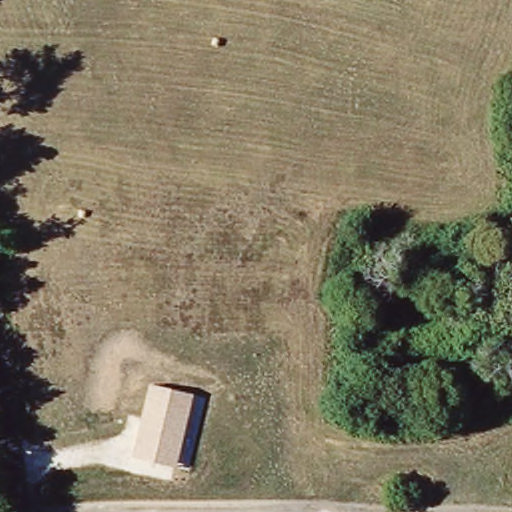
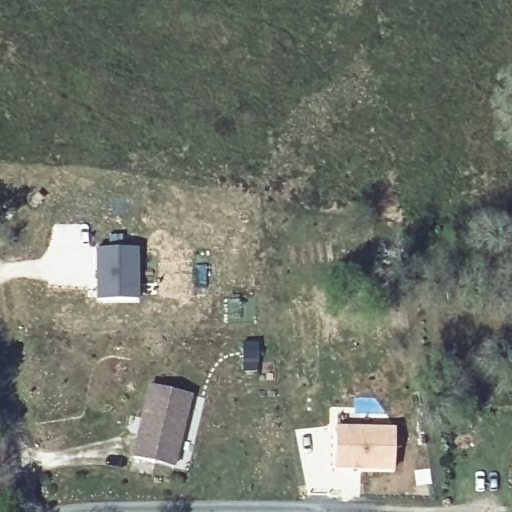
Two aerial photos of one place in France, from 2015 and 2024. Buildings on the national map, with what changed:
new [(136,301),(95,302),(94,249),(137,250),(136,301)]
unchanged [(193,395),(175,467),(132,456),(149,385),(193,395)]
new [(336,425),(396,427),(394,472),(334,470),(336,425)]

